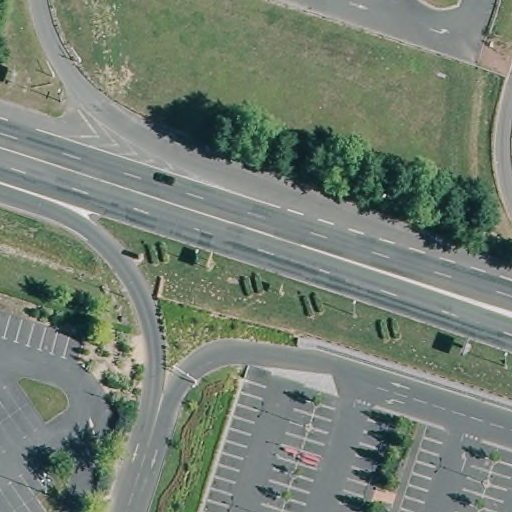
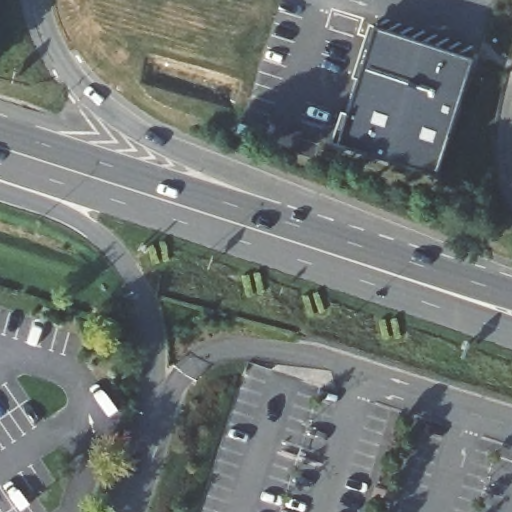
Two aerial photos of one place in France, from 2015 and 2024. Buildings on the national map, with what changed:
new [(434,174),(338,143),(374,28),(471,59),(434,174)]

